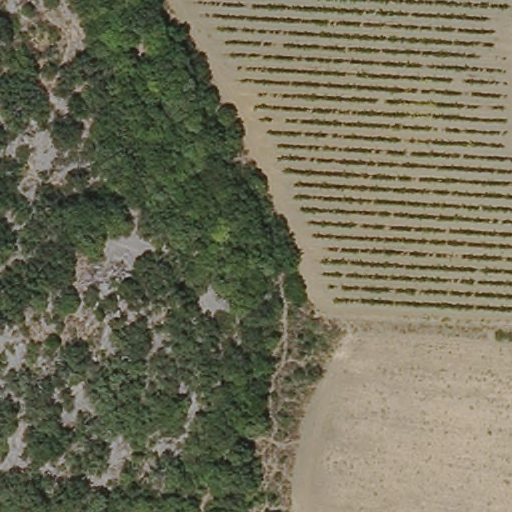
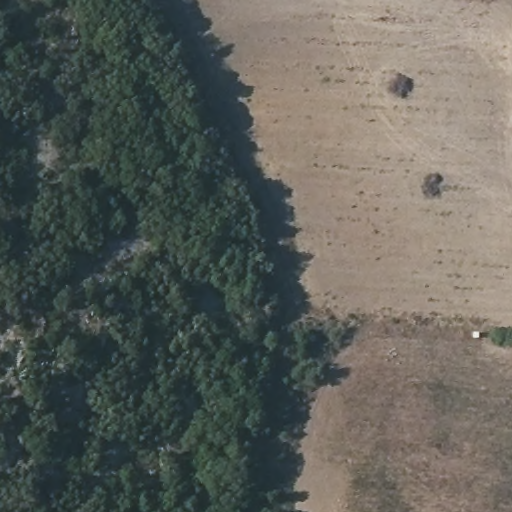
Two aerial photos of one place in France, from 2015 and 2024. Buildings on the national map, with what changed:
[]

